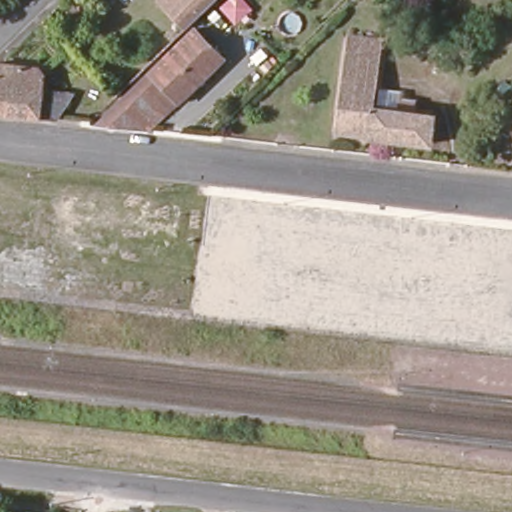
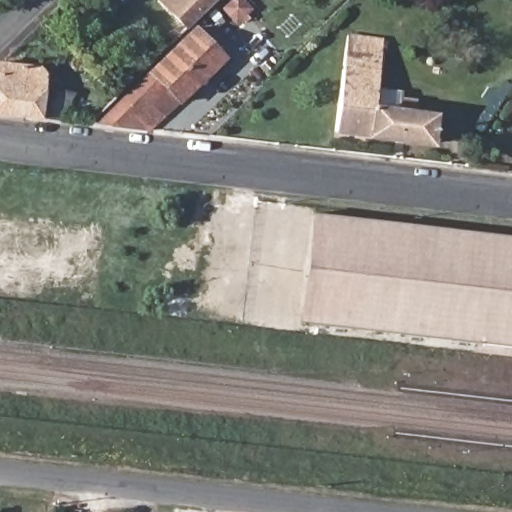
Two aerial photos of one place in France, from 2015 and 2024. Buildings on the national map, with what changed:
unchanged [(212,9),(188,33),(161,4),(164,0),(222,0),(212,9)]
unchanged [(378,37),(378,30),(386,31),(379,110),(438,117),(435,146),(341,135),(348,66),(342,66),(343,55),(350,55),(352,34),(378,37)]
unchanged [(197,31),(228,62),(155,132),(128,129),(101,125),(197,31)]
unchanged [(26,89),(77,97),(63,121),(0,113),(0,66),(1,64),(29,69),(26,89)]
new [(299,322),(312,214),(512,236),(512,347),(299,322)]

